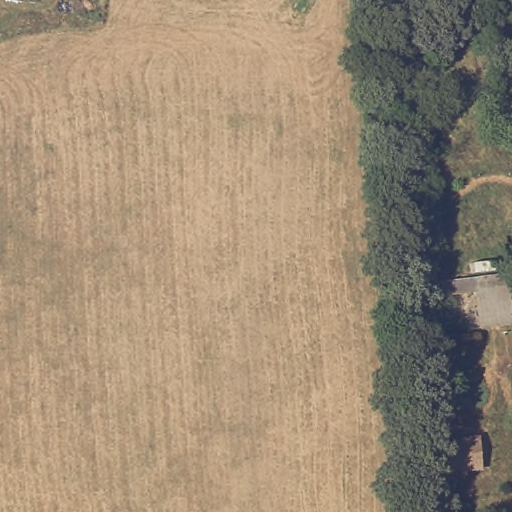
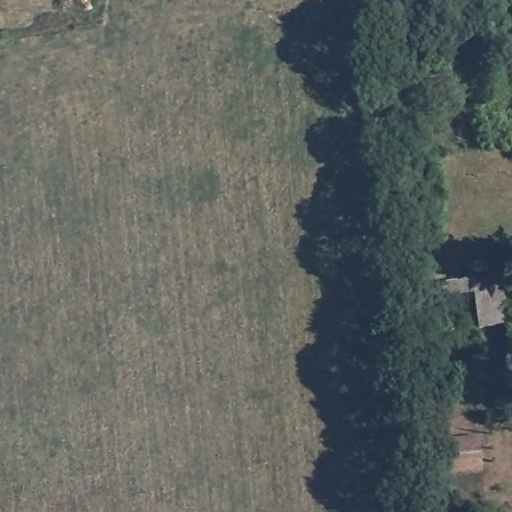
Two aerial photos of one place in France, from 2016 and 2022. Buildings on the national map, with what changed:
unchanged [(505,287),(510,287),(512,303),(512,323),(479,329),(475,291),(431,297),(430,285),(503,276),(505,287)]
unchanged [(441,472),(438,441),(473,438),(476,468),(441,472)]

